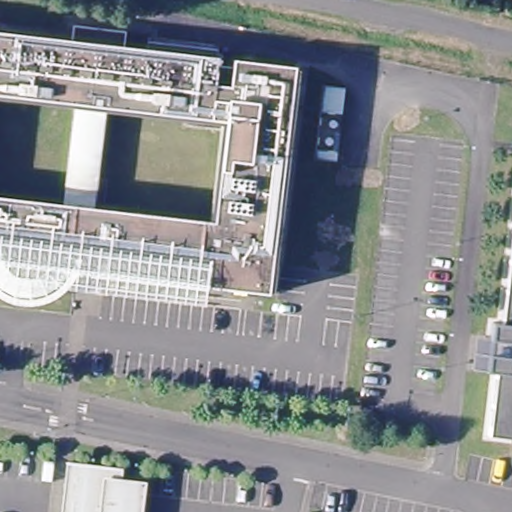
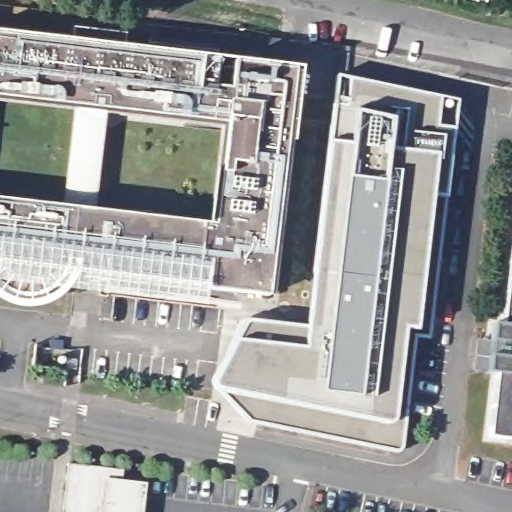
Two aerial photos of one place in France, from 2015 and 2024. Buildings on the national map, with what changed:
unchanged [(0,294),(0,202),(64,212),(94,216),(216,233),(230,129),(109,111),(102,111),(79,108),(0,96),(0,33),(75,43),(78,26),(131,34),(129,51),(299,74),(268,301),(205,292),(207,285),(76,267),(73,278),(65,288),(55,296),(44,301),(29,303),(14,301),(0,295),(0,294)]
new [(249,422),(220,390),(217,388),(215,383),(237,343),(249,322),(310,328),(329,143),(337,76),(459,101),(444,198),(429,338),(414,337),(402,449),(249,422)]
demolished [(344,100),(340,126),(319,123),(322,97),(344,100)]
unchanged [(94,216),(64,212),(79,108),(102,111),(109,111),(94,216)]
demolished [(334,174),(312,171),(314,161),(335,165),(334,174)]
unchanged [(486,440),(494,378),(484,376),(492,327),(502,328),(512,255),(512,443),(486,440)]
unchanged [(136,512),(60,512),(66,464),(119,470),(117,483),(139,486),(136,512)]

